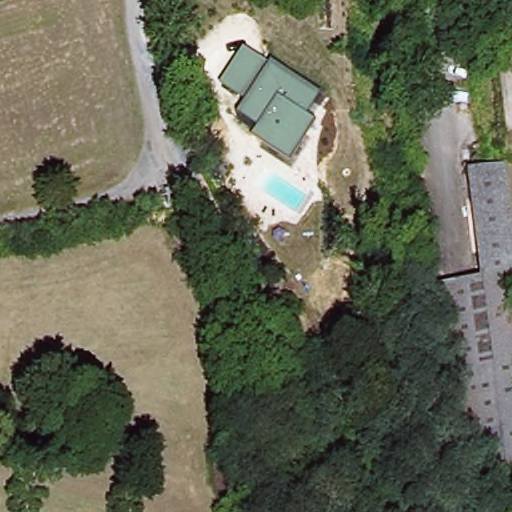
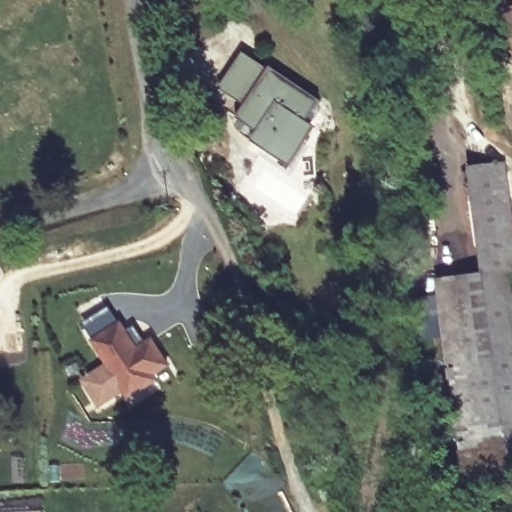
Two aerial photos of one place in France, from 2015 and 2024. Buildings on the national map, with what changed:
unchanged [(496,39),(494,10),(512,8),(512,37),(496,39)]
unchanged [(243,107),(218,92),(242,56),(266,72),(243,107)]
unchanged [(320,101),(297,135),(308,142),(290,169),(251,144),(258,132),(236,117),(270,66),(320,101)]
unchanged [(481,490),(478,467),(466,468),(441,278),(487,272),(472,162),(508,157),(512,187),(512,486),(481,490)]
new [(93,342),(96,340),(87,325),(110,311),(120,326),(122,324),(137,350),(152,340),(168,367),(154,376),(157,381),(129,398),(125,391),(99,407),(83,380),(108,365),(93,342)]

